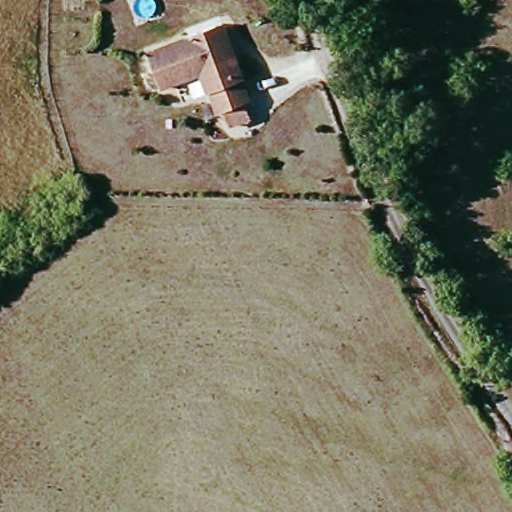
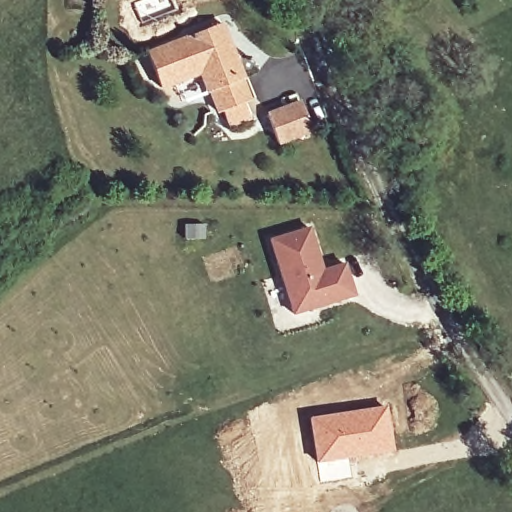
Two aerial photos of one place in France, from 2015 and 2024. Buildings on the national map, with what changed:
unchanged [(229,26),(245,82),(243,84),(248,105),(244,107),(249,120),(227,129),(222,113),(217,113),(211,92),(208,92),(203,72),(162,85),(152,48),(229,26)]
new [(300,99),(312,135),(277,146),(265,111),(300,99)]
new [(312,223),(325,267),(345,260),(356,296),(292,315),(267,237),(312,223)]
new [(387,403),(395,452),(315,463),(307,416),(387,403)]

